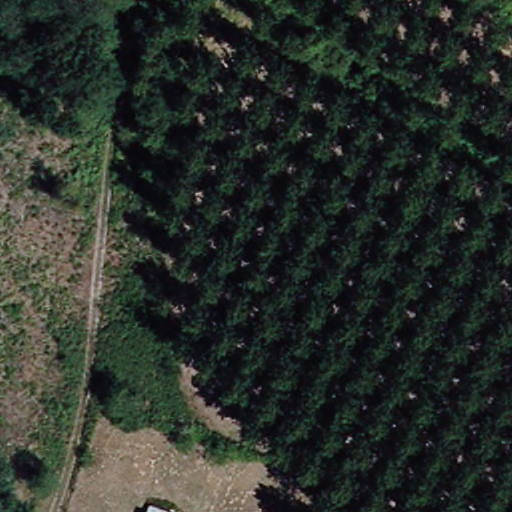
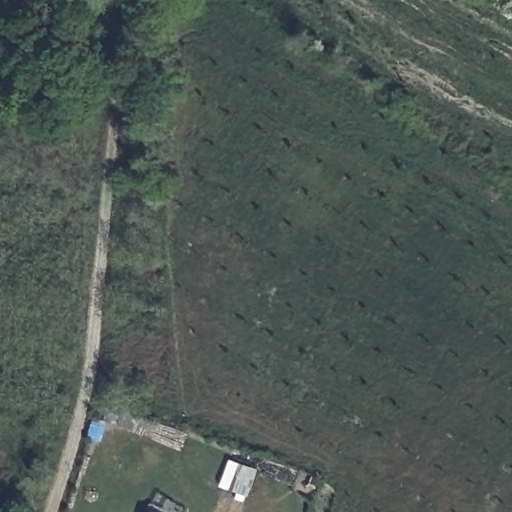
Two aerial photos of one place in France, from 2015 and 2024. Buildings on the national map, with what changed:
unchanged [(146,512),(136,512),(137,508),(146,512)]

